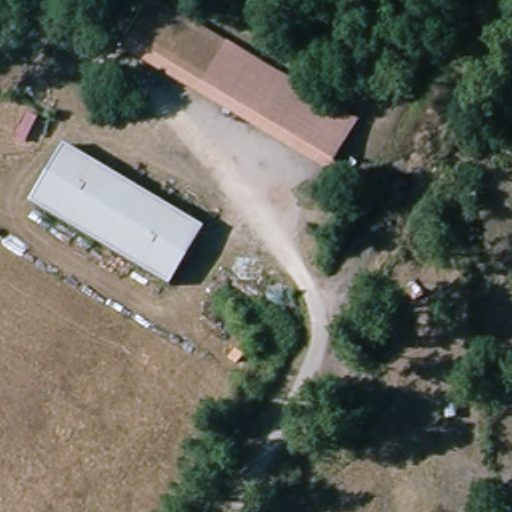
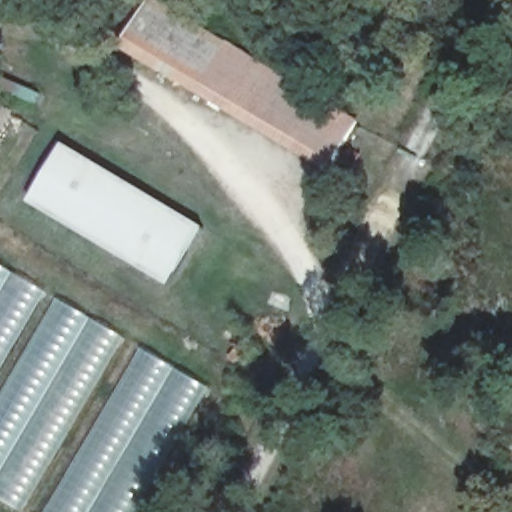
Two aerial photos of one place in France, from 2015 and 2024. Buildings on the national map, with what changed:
unchanged [(123,44),(153,0),(160,0),(364,118),(337,172),(123,44)]
unchanged [(206,228),(171,287),(29,202),(64,143),(206,228)]
new [(205,385),(131,512),(26,512),(0,497),(0,266),(205,385)]

